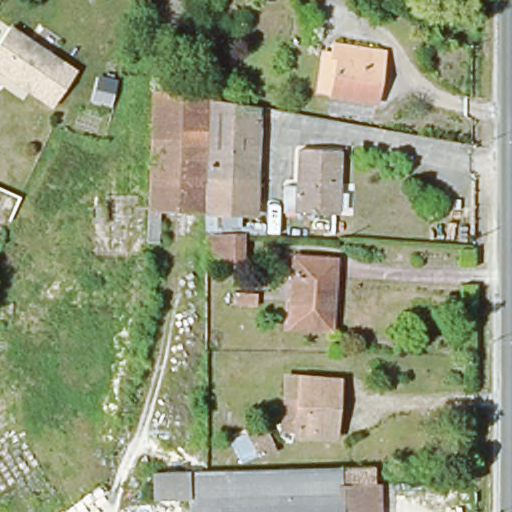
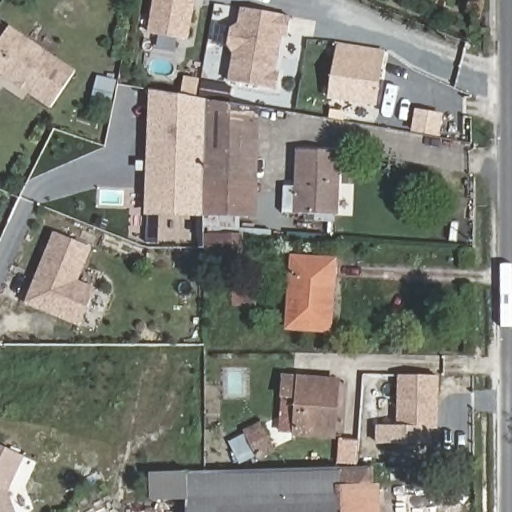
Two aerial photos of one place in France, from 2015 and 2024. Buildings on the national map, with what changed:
new [(149,34),(154,0),(196,0),(189,41),(149,34)]
new [(288,38),(283,37),(278,71),(281,72),(279,90),(229,82),(233,54),(228,47),(230,28),(238,25),(241,7),(292,16),(288,38)]
unchanged [(55,106),(3,70),(0,74),(0,46),(14,26),(79,72),(55,106)]
unchanged [(334,45),(384,52),(375,104),(331,97),(332,95),(317,92),(322,54),(333,55),(334,45)]
unchanged [(148,243),(149,213),(154,91),(209,100),(209,102),(205,214),(160,213),(159,244),(148,243)]
unchanged [(255,216),(205,214),(209,102),(259,110),(255,216)]
unchanged [(298,187),(299,150),(340,152),(338,216),(297,214),(283,213),(284,187),(298,187)]
new [(56,235),(91,249),(77,282),(94,290),(80,325),(63,317),(59,310),(47,305),(45,310),(28,303),(56,235)]
unchanged [(242,265),(205,266),(205,235),(242,235),(242,265)]
unchanged [(336,260),(331,332),(288,328),(293,257),(336,260)]
unchanged [(255,306),(234,305),(234,294),(257,296),(255,306)]
new [(399,375),(438,376),(438,405),(434,405),(434,411),(437,417),(437,427),(399,427),(399,375)]
unchanged [(283,403),(284,377),(339,381),(335,437),(295,435),(280,433),(283,403)]
unchanged [(274,451),(259,458),(246,432),(262,425),(274,451)]
new [(8,492),(16,512),(0,512),(0,445),(24,457),(8,492)]
unchanged [(373,467),(373,487),(379,487),(379,505),(373,505),(373,512),(190,512),(190,499),(154,500),(154,473),(189,473),(189,472),(373,467)]

